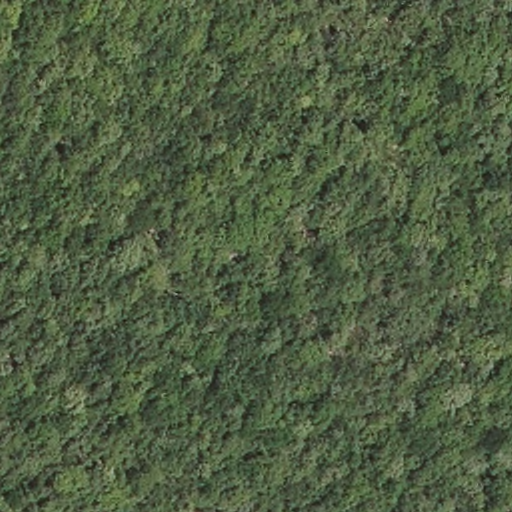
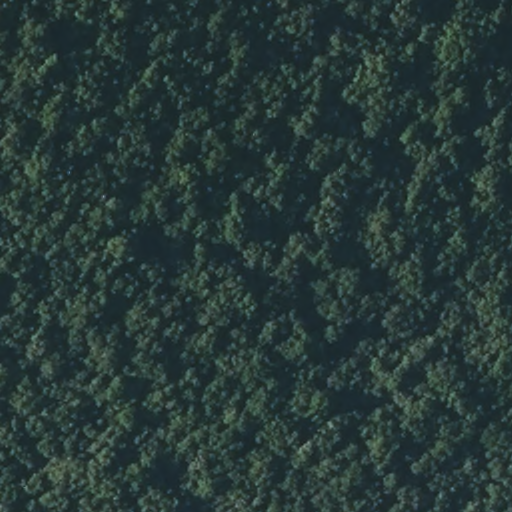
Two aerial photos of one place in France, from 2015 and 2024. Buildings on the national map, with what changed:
[]

